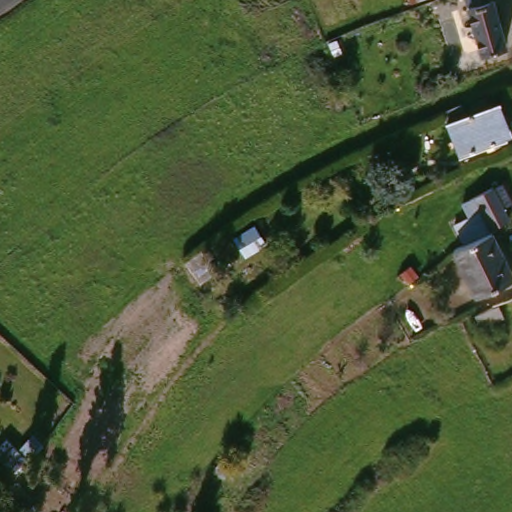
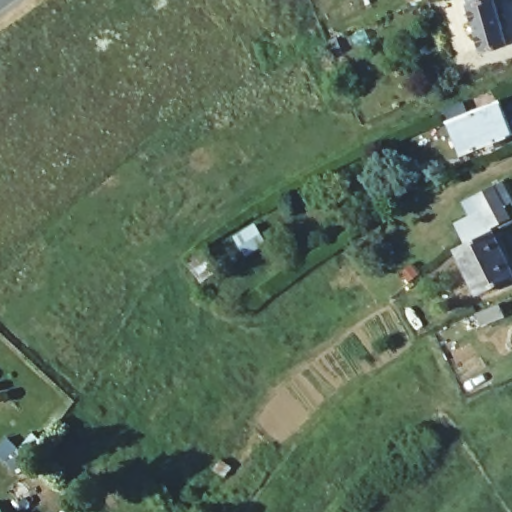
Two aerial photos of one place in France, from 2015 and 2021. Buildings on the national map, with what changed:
unchanged [(512,25),(512,42),(490,48),(477,0),(505,0),(512,25)]
unchanged [(503,99),(512,121),(512,135),(471,152),(457,118),(503,99)]
unchanged [(512,178),(512,218),(499,225),(490,207),(479,213),(472,198),(504,182),(512,178)]
unchanged [(499,230),(512,254),(512,281),(487,294),(464,248),(499,230)]

